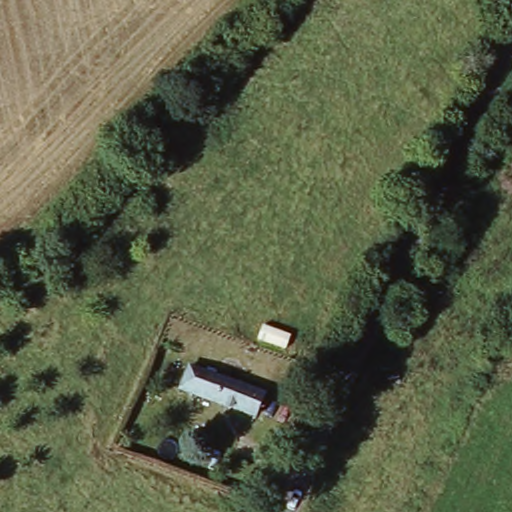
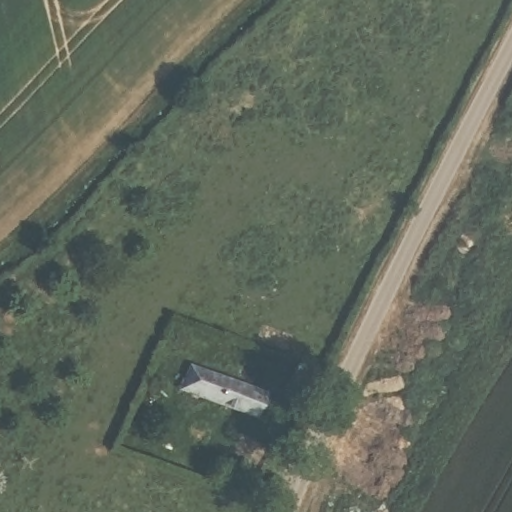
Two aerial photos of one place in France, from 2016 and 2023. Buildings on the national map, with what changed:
unchanged [(256,416),(180,383),(189,364),(265,397),(256,416)]

